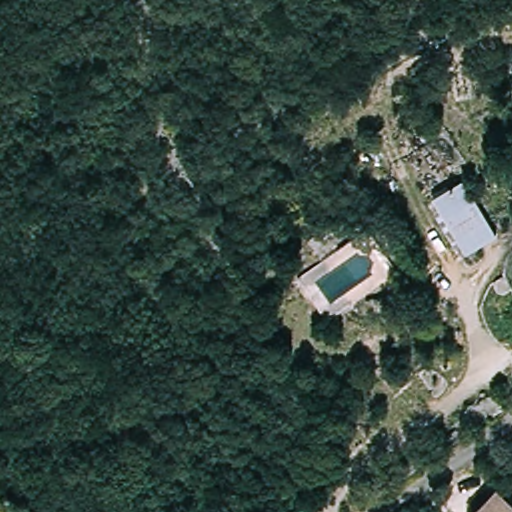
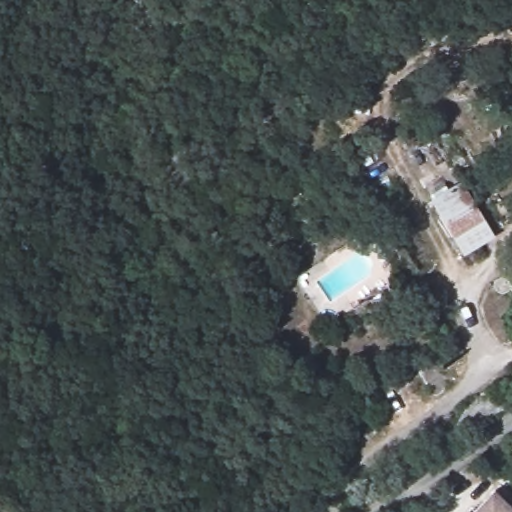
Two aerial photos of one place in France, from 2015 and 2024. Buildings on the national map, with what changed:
unchanged [(497,235),(465,256),(429,199),(463,177),(497,235)]
unchanged [(512,507),(512,512),(472,512),(494,489),(512,507)]

